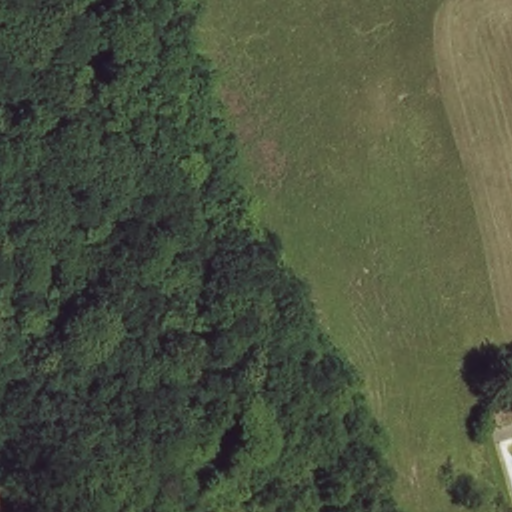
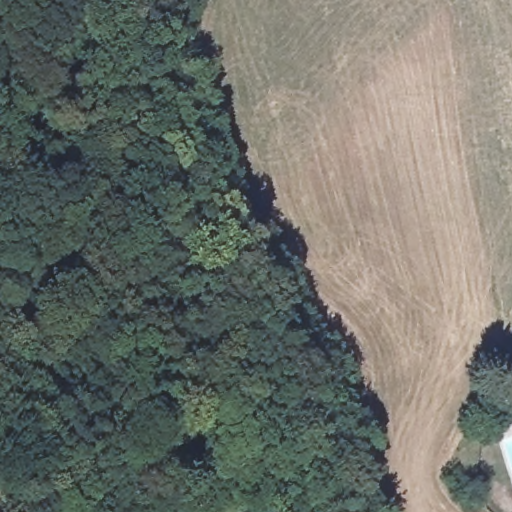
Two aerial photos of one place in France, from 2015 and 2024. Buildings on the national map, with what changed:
[]

